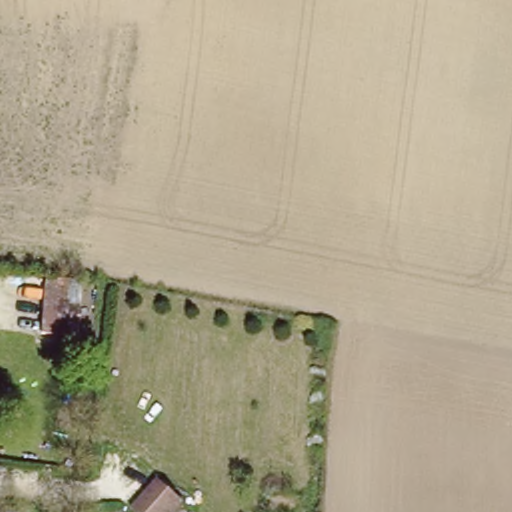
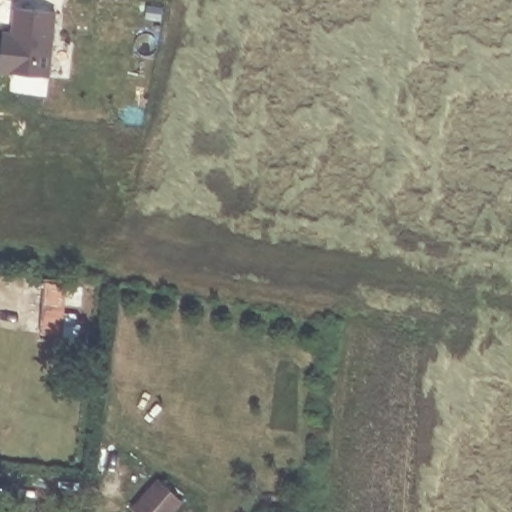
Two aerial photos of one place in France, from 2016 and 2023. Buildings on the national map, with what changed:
new [(4,31),(11,32),(15,8),(56,11),(50,76),(0,72),(0,67),(4,31)]
unchanged [(65,337),(45,335),(51,287),(70,289),(65,337)]
unchanged [(132,509),(156,480),(182,502),(172,512),(136,512),(132,509)]
demolished [(58,512),(43,512),(46,497),(60,500),(58,512)]

